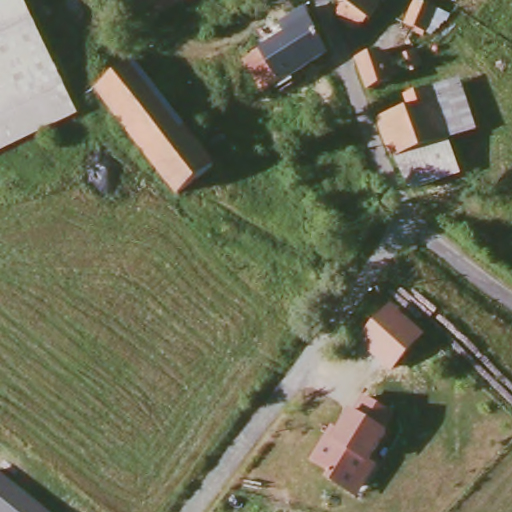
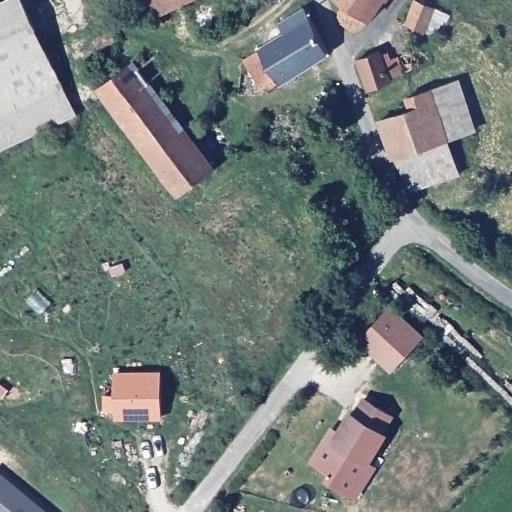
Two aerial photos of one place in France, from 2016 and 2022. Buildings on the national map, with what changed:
unchanged [(21,0),(23,0),(63,90),(0,119),(0,10),(21,0)]
unchanged [(146,0),(192,0),(155,16),(146,0)]
unchanged [(359,33),(351,32),(345,29),(342,23),(341,16),(343,10),(333,0),(386,0),(365,31),(359,33)]
unchanged [(430,4),(443,9),(430,38),(421,34),(422,29),(414,25),(424,1),(430,4)]
unchanged [(333,55),(267,95),(248,64),(290,38),(284,28),(311,12),(333,55)]
unchanged [(426,64),(413,69),(407,53),(420,48),(426,64)]
unchanged [(386,54),(389,61),(403,55),(409,70),(395,77),(395,80),(373,89),(362,60),(384,51),(386,54)]
unchanged [(134,60),(214,168),(178,194),(98,86),(134,60)]
unchanged [(462,83),(480,130),(455,141),(437,93),(462,83)]
unchanged [(75,119),(0,152),(0,119),(63,90),(75,119)]
unchanged [(418,115),(414,102),(432,95),(437,93),(455,141),(402,166),(387,126),(418,115)]
unchanged [(455,144),(464,165),(415,186),(402,166),(455,141),(455,144)]
unchanged [(357,340),(392,304),(426,333),(391,371),(357,340)]
new [(162,418),(114,420),(114,409),(101,410),(101,393),(115,392),(114,370),(161,370),(162,418)]
unchanged [(352,495),(344,489),(325,477),(329,471),(309,460),(324,435),(330,438),(348,410),(351,412),(361,397),(388,413),(379,430),(382,431),(364,460),(370,465),(352,495)]
unchanged [(48,512),(0,512),(0,474),(48,512)]

